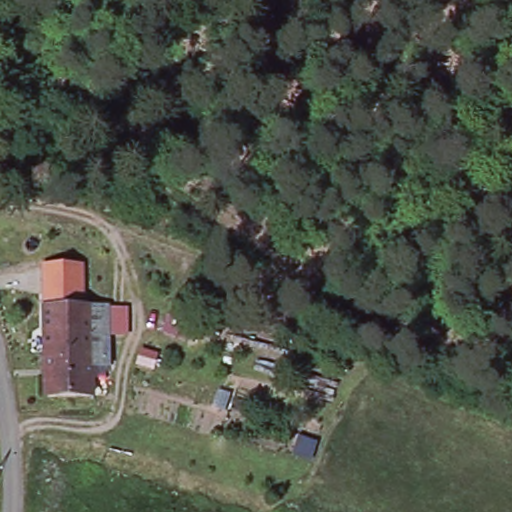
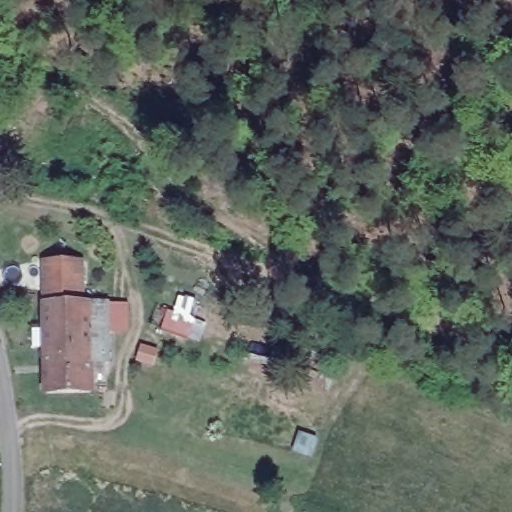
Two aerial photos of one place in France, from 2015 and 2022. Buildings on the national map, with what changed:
unchanged [(42,302),(41,259),(85,260),(87,302),(110,302),(131,301),(131,331),(112,331),(112,376),(90,377),(90,400),(43,396),(42,302)]

